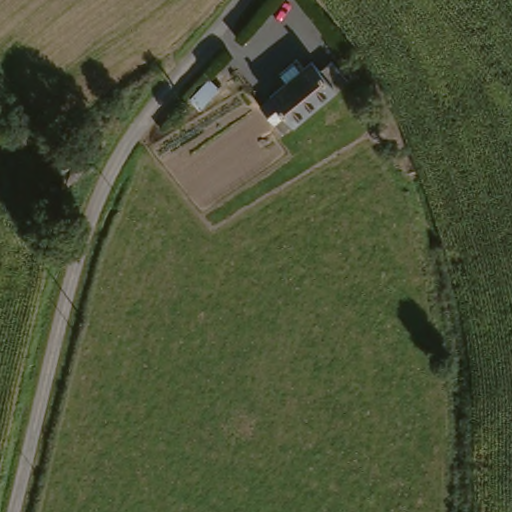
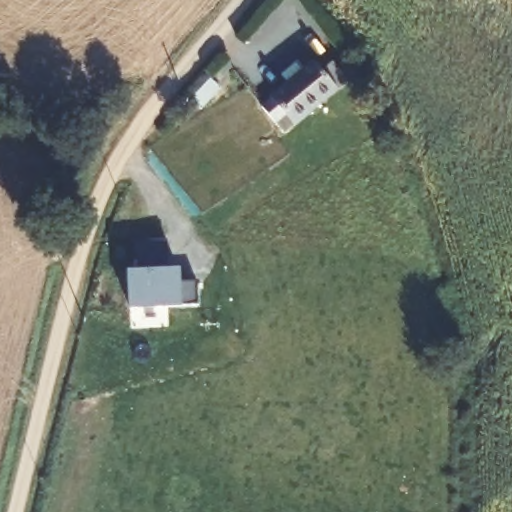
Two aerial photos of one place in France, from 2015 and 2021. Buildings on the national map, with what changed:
unchanged [(341,88),(299,122),(289,112),(278,121),(267,106),(279,97),(275,92),(319,58),(341,88)]
new [(136,236),(164,236),(166,262),(183,263),(183,281),(200,283),(200,301),(130,302),(126,265),(136,265),(136,236)]

